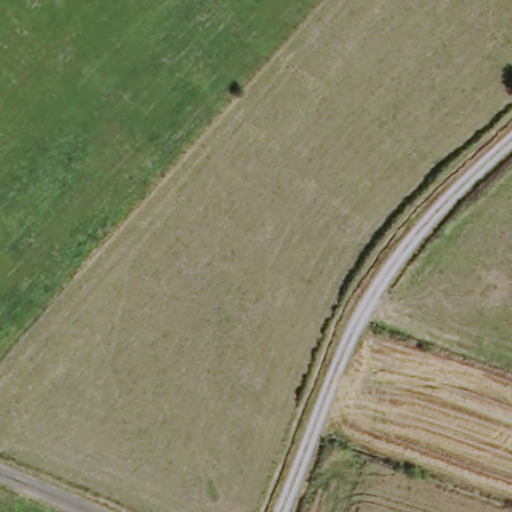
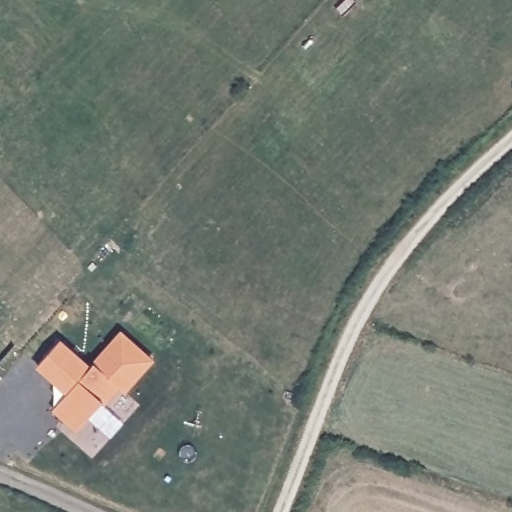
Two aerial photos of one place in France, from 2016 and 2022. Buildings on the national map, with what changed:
new [(68,394),(37,367),(62,341),(92,366),(121,330),(155,360),(126,393),(120,388),(104,402),(77,431),(52,410),(68,394)]

